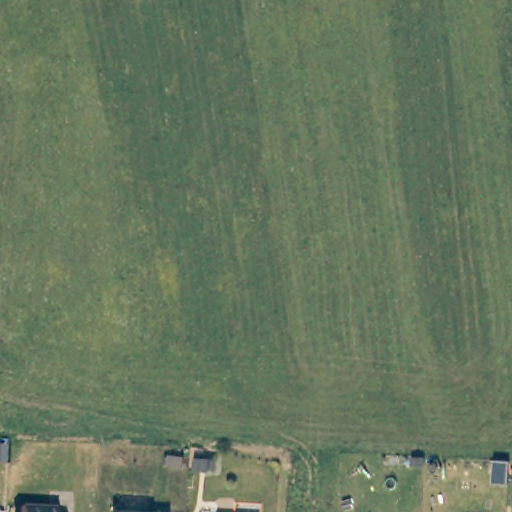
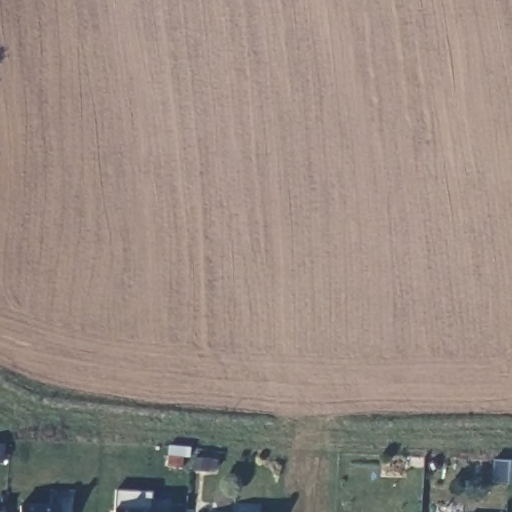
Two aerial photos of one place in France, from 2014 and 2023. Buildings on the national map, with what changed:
unchanged [(63,512),(22,512),(22,505),(63,507),(63,512)]
unchanged [(115,512),(115,510),(144,512),(115,512)]

